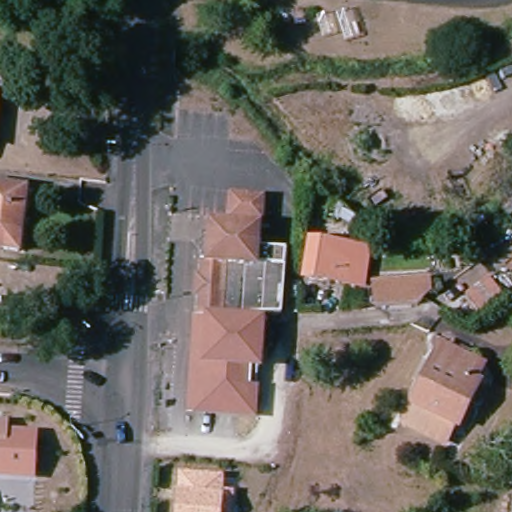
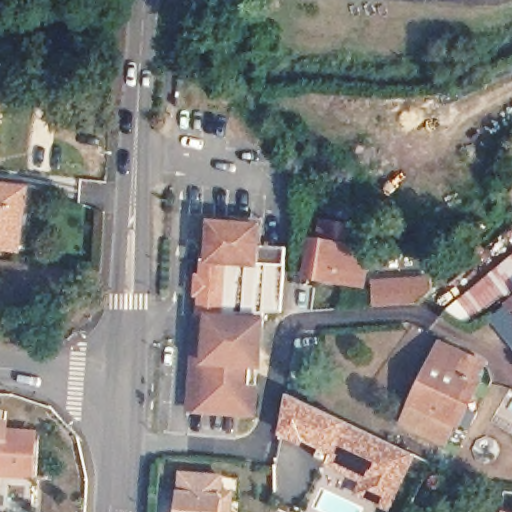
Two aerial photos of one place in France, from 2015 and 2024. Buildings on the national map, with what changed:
unchanged [(14,257),(0,256),(0,195),(20,197),(14,257)]
unchanged [(276,248),(289,250),(283,314),(266,315),(201,319),(205,264),(210,265),(211,244),(230,226),(230,217),(231,212),(234,195),(265,200),(262,219),(262,222),(261,230),(258,252),(267,254),(276,248)]
unchanged [(305,244),(339,251),(338,254),(348,255),(343,286),(333,285),(333,287),(298,281),(305,244)]
unchanged [(375,293),(423,291),(424,309),(376,312),(375,293)]
unchanged [(501,314),(512,306),(512,326),(501,314)]
unchanged [(258,413),(256,412),(250,412),(203,409),(195,408),(199,365),(200,344),(201,322),(201,319),(266,315),(266,318),(264,339),(261,369),(260,395),(258,413)]
unchanged [(436,351),(476,370),(469,385),(474,388),(452,431),(447,428),(437,448),(398,428),(436,351)]
new [(286,394),(413,454),(387,507),(357,493),(369,469),(332,451),(326,463),(315,458),(320,446),(280,427),(286,394)]
unchanged [(4,433),(34,434),(31,476),(0,474),(1,456),(0,456),(0,423),(5,423),(4,433)]
unchanged [(216,482),(215,497),(226,498),(225,512),(174,512),(176,478),(216,482)]

